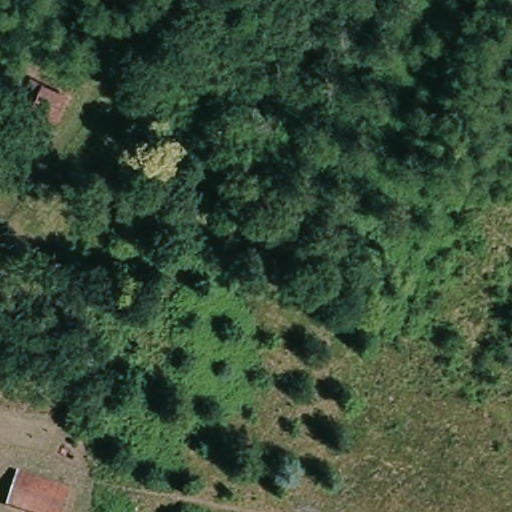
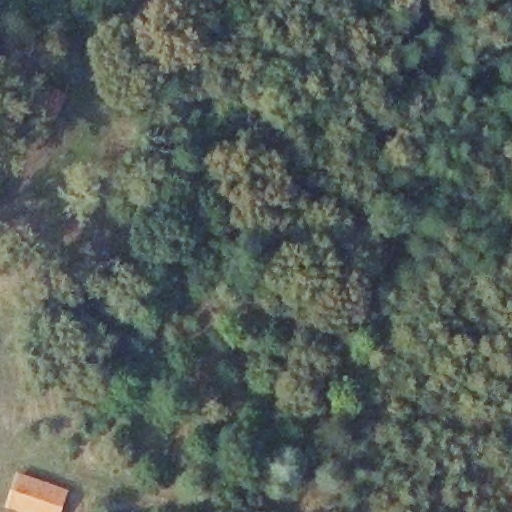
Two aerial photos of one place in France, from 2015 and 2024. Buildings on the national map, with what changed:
unchanged [(10,477),(63,493),(57,512),(21,512),(3,506),(10,477)]

